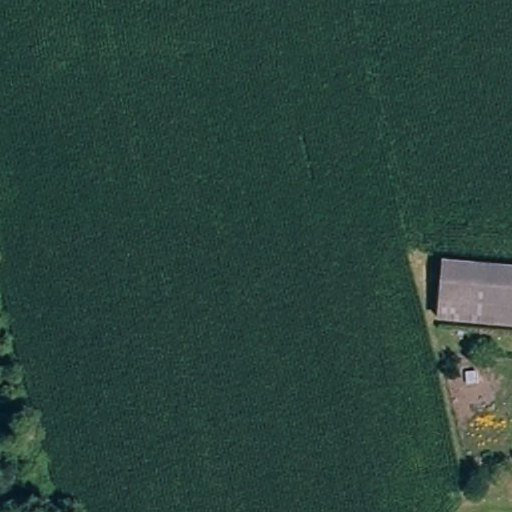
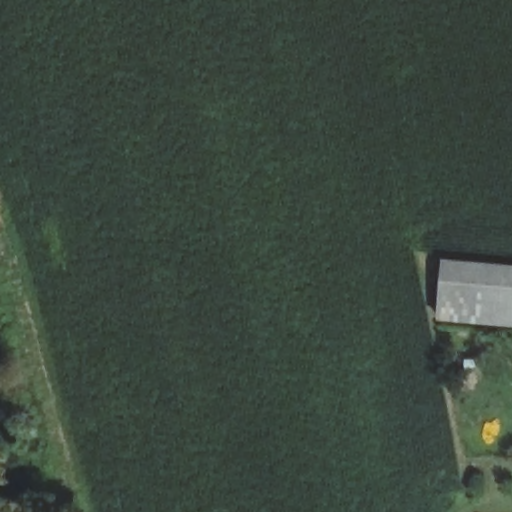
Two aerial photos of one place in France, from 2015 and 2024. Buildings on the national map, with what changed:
unchanged [(440,319),(445,257),(512,264),(512,324),(440,319)]

